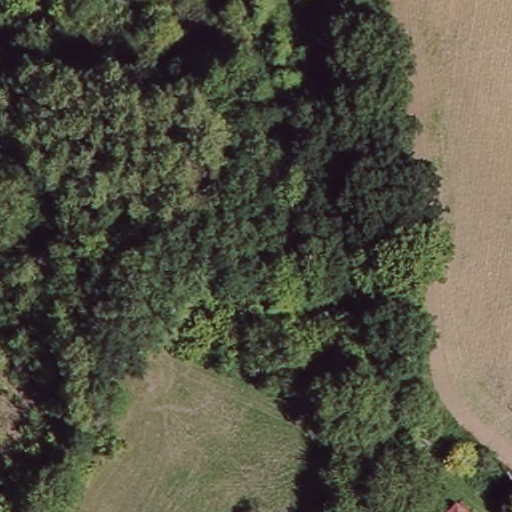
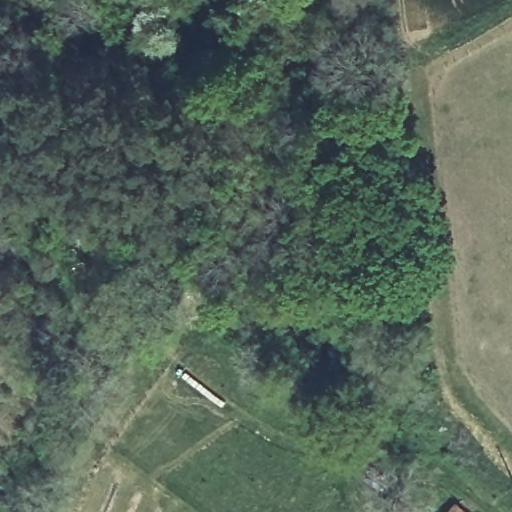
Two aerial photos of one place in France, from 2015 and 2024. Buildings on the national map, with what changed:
unchanged [(465,500),(476,508),(473,512),(455,512),(465,500)]

